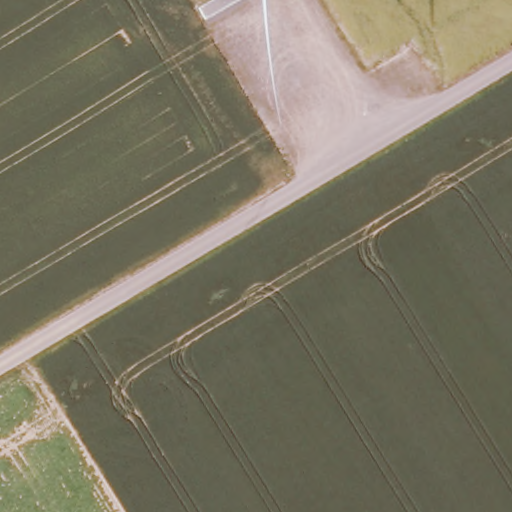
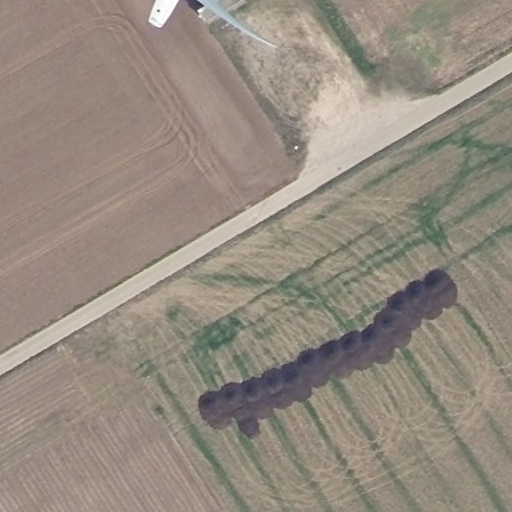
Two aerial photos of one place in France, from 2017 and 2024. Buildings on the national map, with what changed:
unchanged [(243,0),(207,20),(200,9),(216,0),(243,0)]

